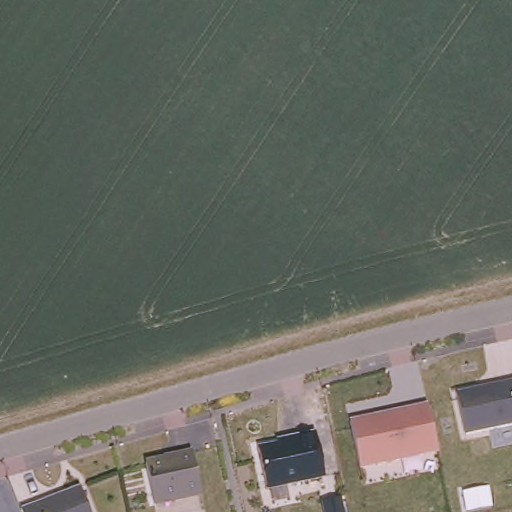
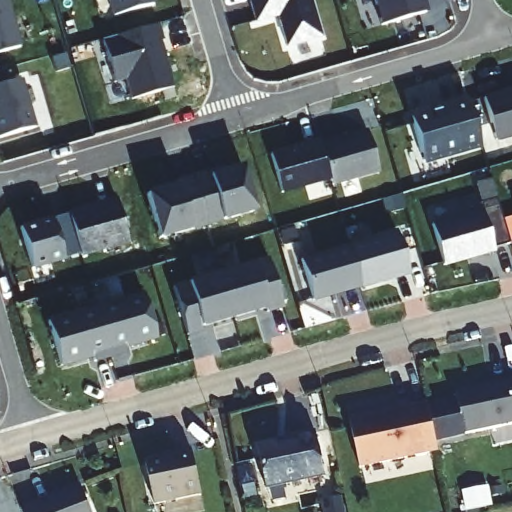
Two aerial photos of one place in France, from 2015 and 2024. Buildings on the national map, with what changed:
new [(7,0),(21,46),(0,52),(0,0),(7,0)]
new [(108,0),(153,0),(154,4),(112,16),(108,0)]
new [(254,23),(248,0),(311,0),(322,36),(286,46),(277,16),(254,23)]
new [(382,25),(375,0),(422,0),(425,11),(382,25)]
new [(160,24),(164,40),(161,41),(175,87),(132,99),(126,79),(115,83),(102,40),(160,24)]
new [(22,80),(36,127),(0,137),(0,86),(22,80)]
new [(484,98),(512,89),(512,135),(497,140),(484,98)]
new [(424,160),(412,117),(440,109),(439,106),(469,97),(482,143),(424,160)]
new [(270,156),(365,130),(379,174),(331,187),(330,181),(281,194),(270,156)]
new [(177,184),(175,180),(208,171),(210,175),(242,166),(257,215),(157,243),(144,194),(177,184)]
new [(20,228),(69,215),(69,212),(115,199),(129,244),(81,257),(80,253),(64,259),(65,261),(34,270),(20,228)]
new [(445,265),(432,224),(483,210),(495,251),(445,265)]
new [(397,230),(400,236),(404,234),(405,242),(402,243),(411,274),(313,303),(302,271),(297,272),(294,265),(300,264),(299,258),(397,230)]
new [(222,272),(270,258),(284,306),(267,310),(267,307),(235,316),(222,272)]
new [(202,326),(204,329),(187,334),(173,286),(222,272),(235,316),(202,326)]
new [(159,342),(95,362),(93,357),(61,366),(48,321),(145,292),(159,342)]
unchanged [(451,391),(512,379),(512,420),(460,432),(451,391)]
unchanged [(357,467),(347,417),(423,403),(434,454),(357,467)]
unchanged [(262,490),(254,443),(310,431),(320,477),(262,490)]
unchanged [(151,504),(141,457),(187,449),(197,494),(151,504)]
unchanged [(15,504),(74,481),(88,512),(18,512),(15,504)]

